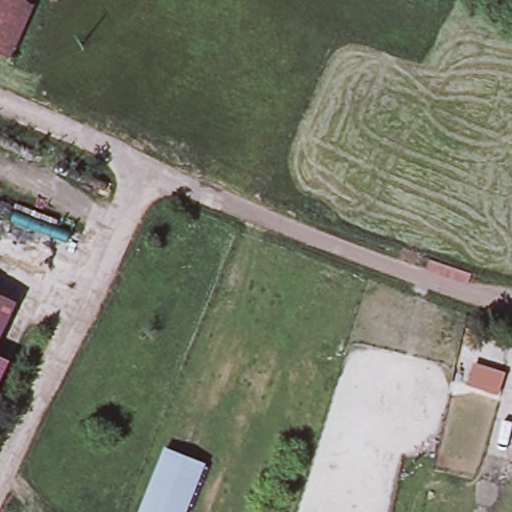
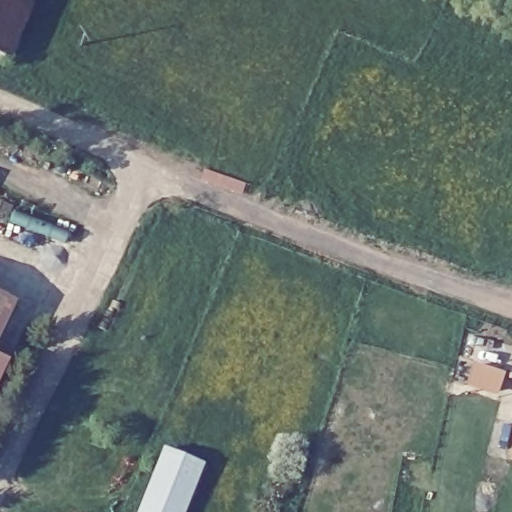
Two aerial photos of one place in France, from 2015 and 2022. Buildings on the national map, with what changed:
unchanged [(10,55),(0,51),(0,0),(31,0),(35,1),(10,55)]
unchanged [(0,341),(0,302),(15,309),(0,341)]
unchanged [(167,442),(205,458),(183,512),(138,512),(167,442)]
unchanged [(510,459),(512,451),(512,460),(510,459)]

